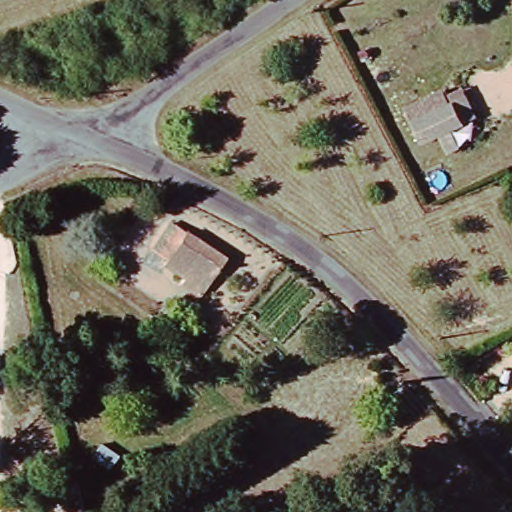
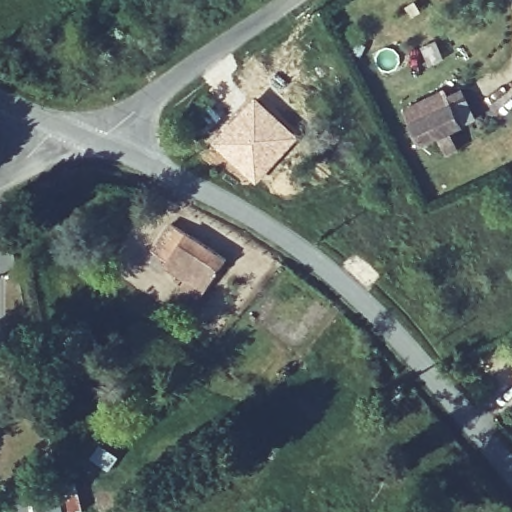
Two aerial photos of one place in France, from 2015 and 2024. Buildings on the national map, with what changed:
new [(254,95),(300,135),(255,184),(208,140),(254,95)]
unchanged [(411,122),(452,102),(458,116),(472,110),(482,131),(427,156),(417,135),(411,122)]
unchanged [(180,286),(184,280),(165,266),(167,263),(151,252),(170,224),(224,260),(198,298),(180,286)]
unchanged [(90,457),(97,447),(114,458),(107,469),(90,457)]
new [(79,511),(72,512),(62,512),(57,485),(73,481),(79,511)]
new [(58,494),(62,512),(35,512),(32,498),(58,494)]

